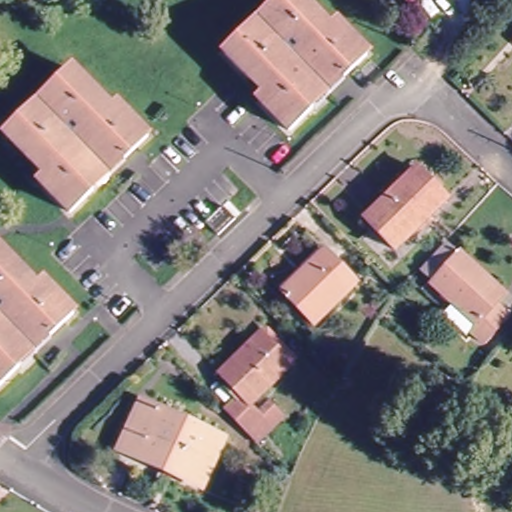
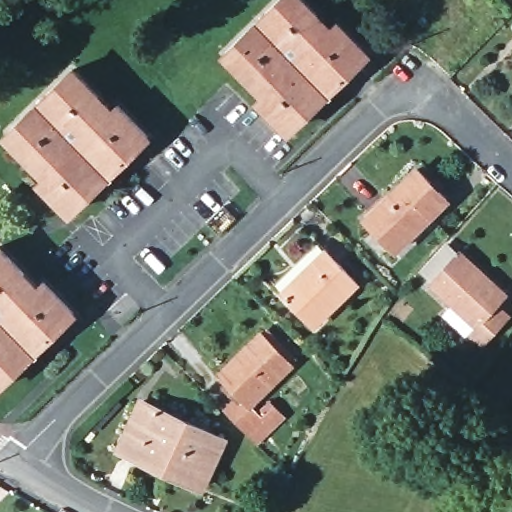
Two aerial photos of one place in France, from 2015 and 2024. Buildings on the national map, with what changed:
unchanged [(290,131),(258,100),(265,95),(250,81),(224,55),(278,0),(302,0),(317,16),(331,30),(337,23),(367,54),(343,78),(345,80),(331,93),(315,109),(313,107),(290,131)]
unchanged [(70,213),(40,183),(45,177),(31,163),(5,137),(71,71),(98,98),(111,112),(118,106),(148,137),(124,161),(125,162),(111,177),(96,191),(95,189),(70,213)]
unchanged [(400,261),(371,231),(423,180),(452,210),(400,261)]
unchanged [(505,290),(494,302),(506,313),(483,338),(471,327),(466,331),(443,310),(455,298),(433,278),(435,276),(423,265),(445,242),(450,246),(456,253),(460,249),(505,290)]
unchanged [(0,249),(25,275),(39,289),(45,283),(75,314),(50,338),(51,339),(38,353),(22,368),(20,366),(0,385),(0,249)]
unchanged [(314,325),(283,293),(326,251),(357,283),(314,325)]
unchanged [(250,443),(246,438),(241,434),(242,432),(220,410),(235,395),(215,374),(256,334),(258,336),(263,332),(289,358),(284,362),(286,365),(245,405),(257,417),(268,406),(278,416),(250,443)]
unchanged [(120,450),(141,402),(224,440),(202,488),(172,475),(137,459),(120,450)]

